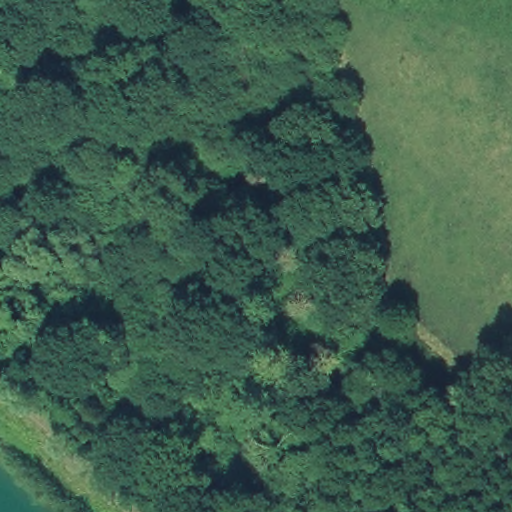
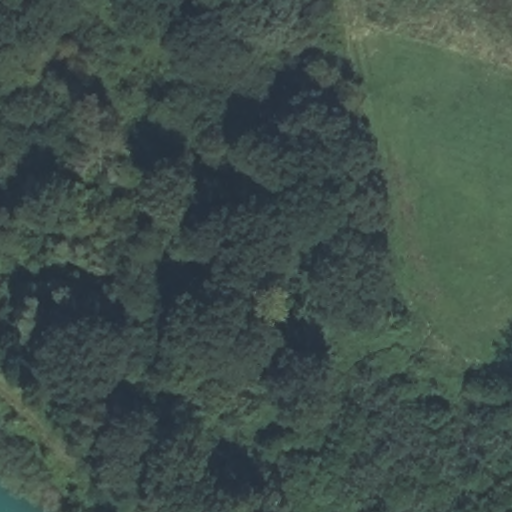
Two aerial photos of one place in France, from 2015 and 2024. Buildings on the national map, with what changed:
[]

